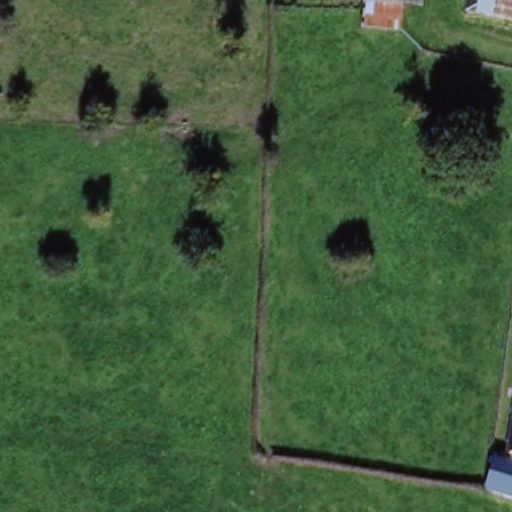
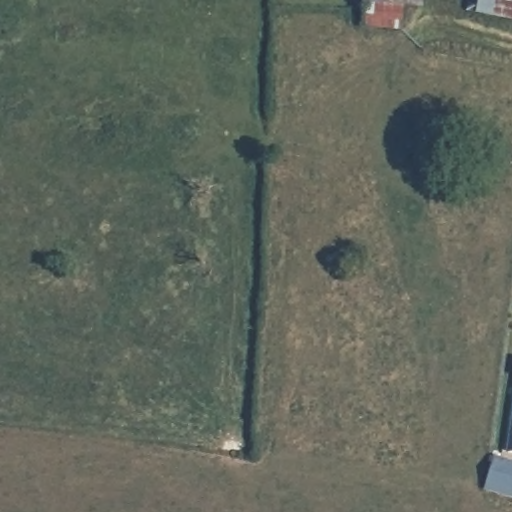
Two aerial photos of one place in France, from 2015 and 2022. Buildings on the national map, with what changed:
unchanged [(357,27),(358,7),(359,0),(399,0),(398,10),(397,31),(357,27)]
unchanged [(472,10),(473,0),(512,0),(512,16),(472,10)]
unchanged [(512,432),(512,445),(510,445),(512,432)]
unchanged [(495,451),(512,457),(512,491),(507,490),(485,483),(495,451)]

